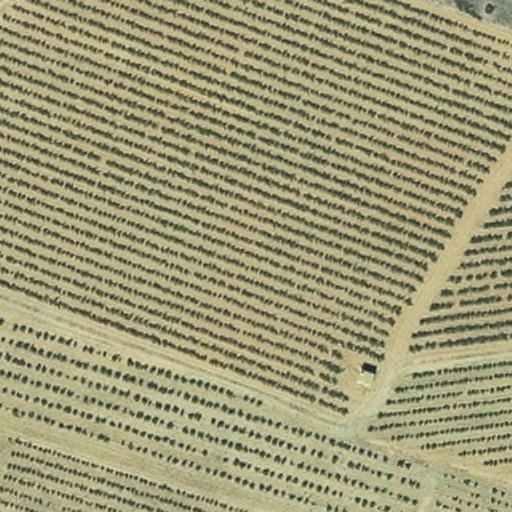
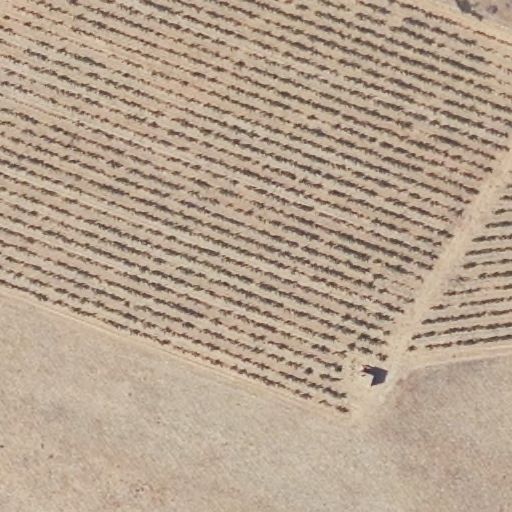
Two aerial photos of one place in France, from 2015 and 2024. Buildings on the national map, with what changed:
unchanged [(374,368),(369,383),(355,379),(361,365),(374,368)]

